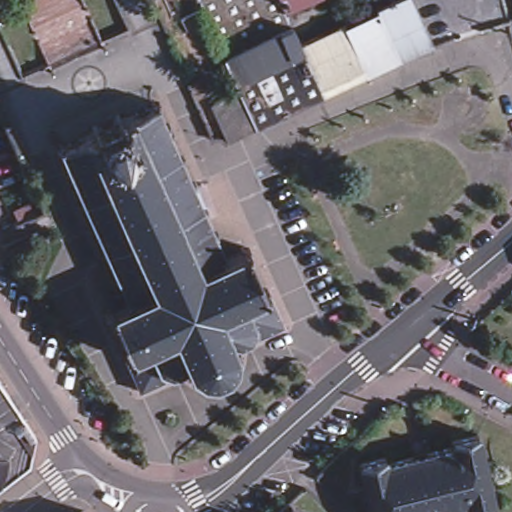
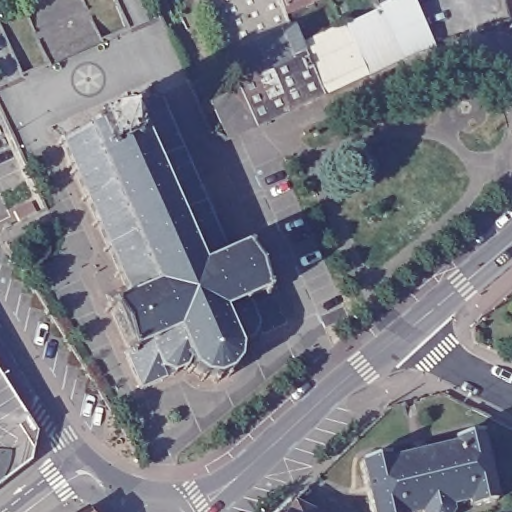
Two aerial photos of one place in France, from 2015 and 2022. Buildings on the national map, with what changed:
unchanged [(300,45),(323,94),(288,111),(246,17),(212,34),(197,0),(279,0),(286,15),(300,45)]
unchanged [(319,0),(286,15),(279,0),(319,0)]
unchanged [(378,11),(375,6),(388,0),(411,0),(432,47),(399,58),(378,11)]
unchanged [(376,69),(354,21),(378,11),(399,58),(376,69)]
unchanged [(254,127),(237,90),(212,34),(246,17),(288,111),(254,127)]
unchanged [(342,25),(365,74),(323,94),(300,45),(342,25)]
unchanged [(226,141),(209,102),(237,90),(254,127),(226,141)]
unchanged [(172,120),(173,122),(170,124),(172,129),(176,127),(177,130),(173,132),(183,155),(187,153),(188,156),(185,157),(195,180),(198,178),(200,181),(195,182),(205,205),(210,203),(210,206),(207,208),(216,230),(220,227),(221,231),(218,233),(228,256),(245,248),(243,245),(247,242),(249,247),(253,245),(255,248),(250,250),(267,287),(271,286),(273,290),(269,292),(270,295),(270,296),(277,313),(278,316),(277,316),(276,316),(258,323),(260,324),(260,326),(258,326),(254,336),(256,337),(254,339),(252,337),(244,341),(244,343),(241,343),(241,341),(235,339),(238,347),(242,346),(243,349),(238,350),(237,359),(241,361),(240,364),(235,362),(234,365),(232,367),(230,370),(232,373),(230,376),(227,372),(225,373),(223,374),(221,375),(219,376),(220,381),(216,381),(216,377),(214,377),(212,377),(210,376),(208,376),(206,376),(204,380),(202,378),(204,375),(200,372),(197,371),(195,368),(192,371),(190,368),(193,366),(191,362),(191,361),(190,358),(187,365),(188,367),(187,368),(185,367),(176,371),(176,372),(173,373),(173,371),(165,367),(163,368),(161,367),(161,366),(143,374),(144,375),(143,376),(141,373),(142,372),(134,355),(133,355),(131,351),(127,353),(126,350),(130,348),(113,310),(110,312),(108,308),(112,307),(110,302),(113,301),(115,305),(130,299),(128,295),(131,293),(123,275),(119,276),(117,273),(121,272),(111,250),(108,251),(106,248),(110,247),(100,225),(96,226),(95,224),(99,222),(89,200),(85,201),(84,199),(88,197),(78,174),(74,176),(72,172),(76,171),(75,167),(70,168),(70,165),(73,164),(65,145),(61,146),(60,144),(63,142),(62,138),(65,137),(67,141),(71,139),(70,137),(72,136),(73,137),(82,134),(81,132),(83,131),(84,132),(87,132),(87,131),(92,128),(92,127),(96,126),(95,125),(96,125),(95,121),(99,119),(100,121),(102,120),(102,121),(104,120),(105,122),(116,117),(115,115),(117,115),(116,113),(118,112),(118,111),(121,109),(123,112),(125,112),(128,111),(128,112),(134,110),(135,111),(138,109),(137,107),(140,106),(140,108),(148,104),(148,102),(150,102),(150,104),(155,101),(154,97),(157,95),(159,100),(163,98),(164,101),(160,102),(168,121),(172,120)]
unchanged [(497,501),(471,507),(470,502),(451,506),(452,512),(374,512),(362,462),(389,456),(390,462),(456,445),(455,440),(482,433),(497,501)]
unchanged [(290,503),(306,512),(285,512),(290,503)]
unchanged [(82,509),(84,512),(78,512),(82,509)]

